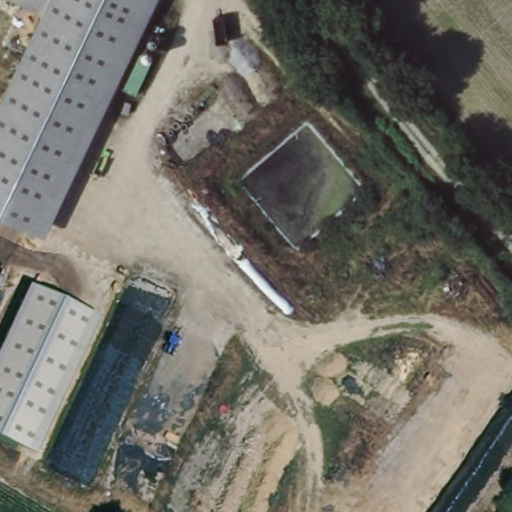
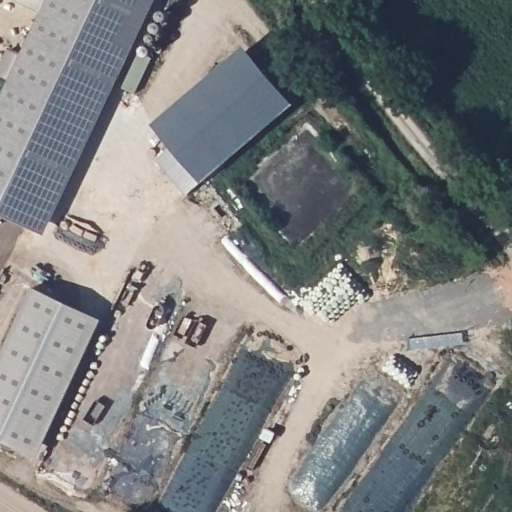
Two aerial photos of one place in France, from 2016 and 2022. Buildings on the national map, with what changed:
unchanged [(42,233),(0,213),(0,100),(43,11),(49,0),(154,0),(42,233)]
unchanged [(19,0),(49,0),(43,11),(19,0)]
new [(246,46),(256,57),(164,134),(155,124),(246,46)]
new [(256,57),(295,102),(203,180),(170,141),(164,134),(256,57)]
new [(170,141),(203,180),(188,193),(155,154),(170,141)]
unchanged [(102,319),(39,457),(0,439),(0,356),(32,287),(102,319)]

